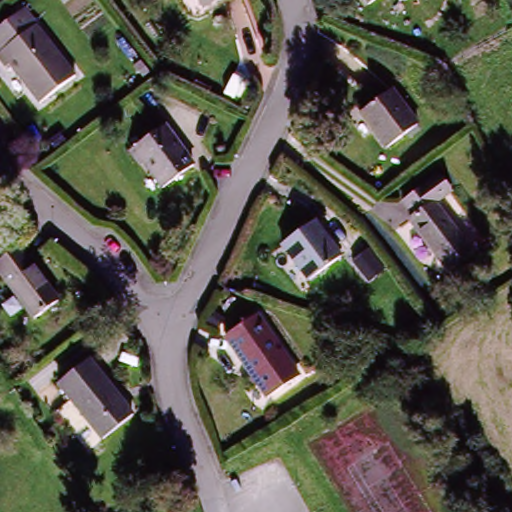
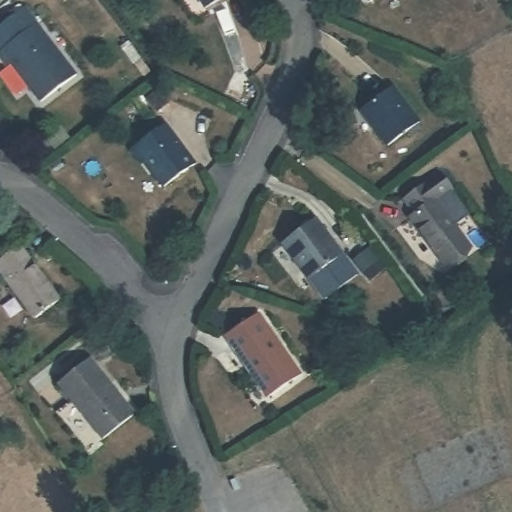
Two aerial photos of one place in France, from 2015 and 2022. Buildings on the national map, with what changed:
unchanged [(210,3),(208,0),(215,0),(210,3)]
unchanged [(368,2),(366,0),(370,0),(368,2)]
unchanged [(14,61),(8,64),(0,51),(0,46),(40,20),(76,74),(39,97),(14,61)]
unchanged [(384,145),(361,107),(394,89),(419,125),(384,145)]
unchanged [(161,185),(133,146),(164,124),(194,164),(161,185)]
unchanged [(444,257),(411,208),(438,192),(469,242),(444,257)]
unchanged [(303,281),(278,241),(311,221),(337,261),(303,281)]
unchanged [(0,273),(0,257),(19,246),(55,304),(30,320),(0,273)]
unchanged [(268,392),(233,327),(264,309),(300,376),(268,392)]
unchanged [(104,437),(64,376),(97,356),(138,417),(104,437)]

